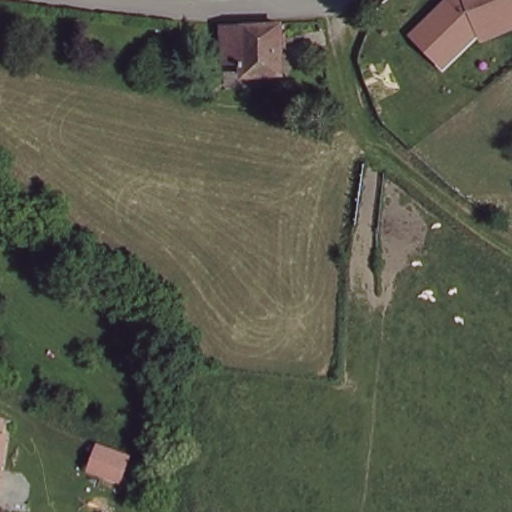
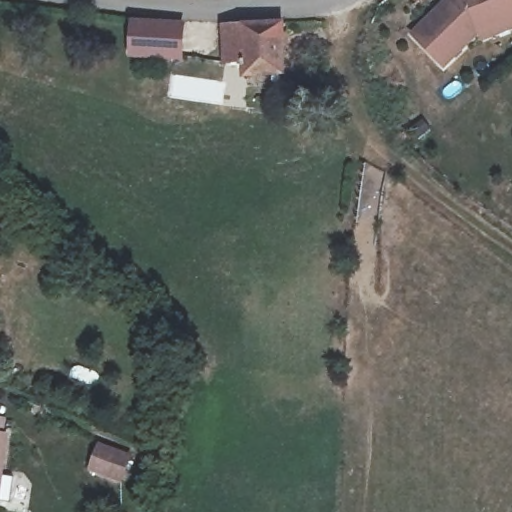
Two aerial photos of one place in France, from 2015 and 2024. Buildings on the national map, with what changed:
unchanged [(512,14),(512,17),(472,32),(439,64),(410,34),(445,0),(512,0),(512,4),(509,5),(512,14)]
new [(188,25),(187,62),(132,60),(133,21),(188,25)]
unchanged [(290,75),(252,75),(251,59),(232,59),(232,28),(289,25),(290,75)]
demolished [(174,44),(158,43),(159,33),(175,35),(174,44)]
unchanged [(1,242),(0,245),(0,242),(1,242)]
unchanged [(3,422),(1,436),(6,437),(0,474),(0,422),(3,422)]
unchanged [(94,465),(99,450),(129,461),(123,477),(121,485),(91,473),(94,465)]

